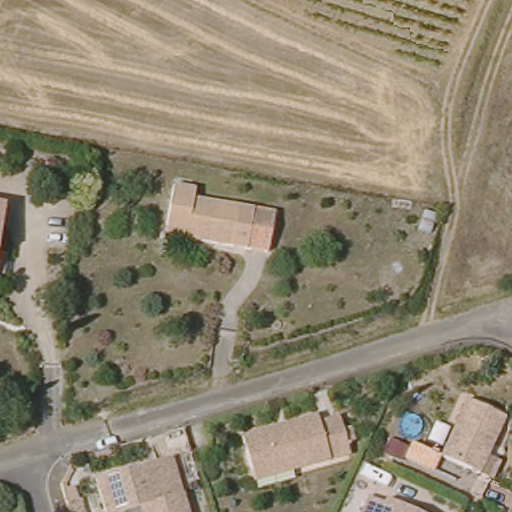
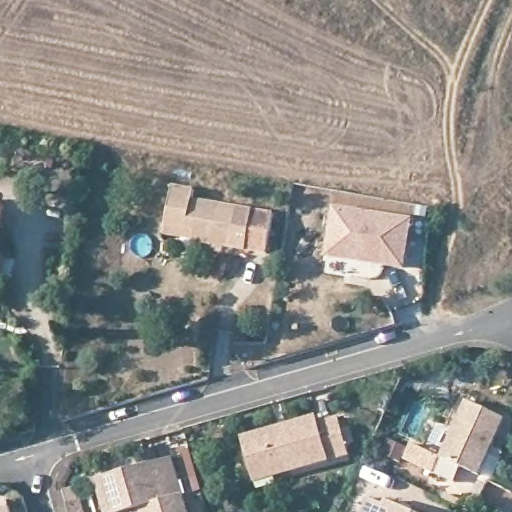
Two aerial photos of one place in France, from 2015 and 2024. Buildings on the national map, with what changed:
unchanged [(172,184),(192,187),(192,196),(272,214),(262,253),(190,239),(165,235),(167,223),(172,184)]
new [(335,209),(410,223),(402,270),(326,255),(335,209)]
unchanged [(0,273),(0,249),(3,250),(0,273)]
unchanged [(470,398),(508,416),(483,472),(445,455),(470,398)]
unchanged [(254,468),(243,435),(280,424),(288,421),(317,413),(320,420),(340,414),(342,424),(351,422),(355,435),(347,438),(350,450),(292,467),(257,478),(254,468)]
unchanged [(120,512),(104,512),(93,478),(143,463),(152,460),(170,455),(188,512),(141,512),(139,506),(120,512)]
unchanged [(390,503),(392,498),(407,506),(413,508),(421,512),(367,512),(374,496),(390,503)]

